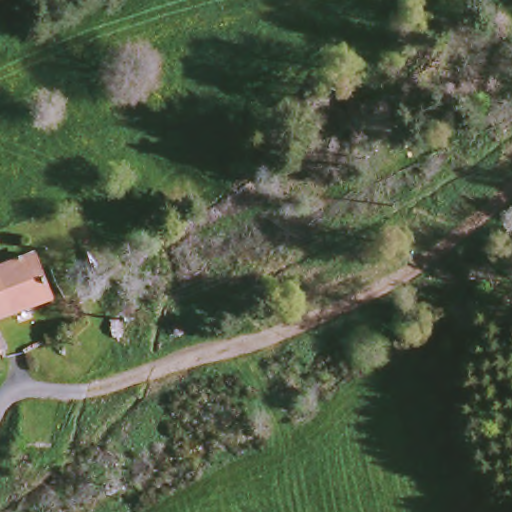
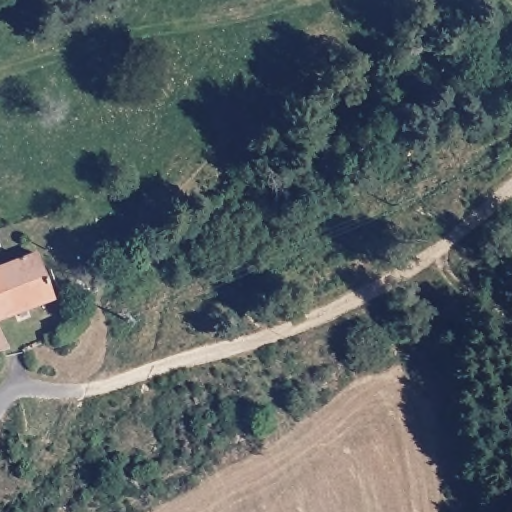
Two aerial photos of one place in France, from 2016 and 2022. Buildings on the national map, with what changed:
unchanged [(51,300),(0,317),(0,266),(32,255),(51,300)]

